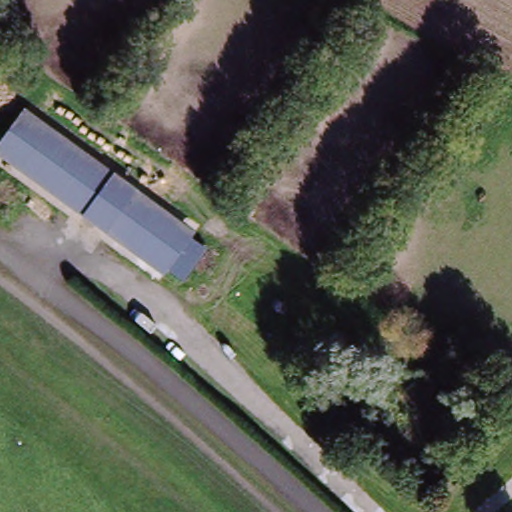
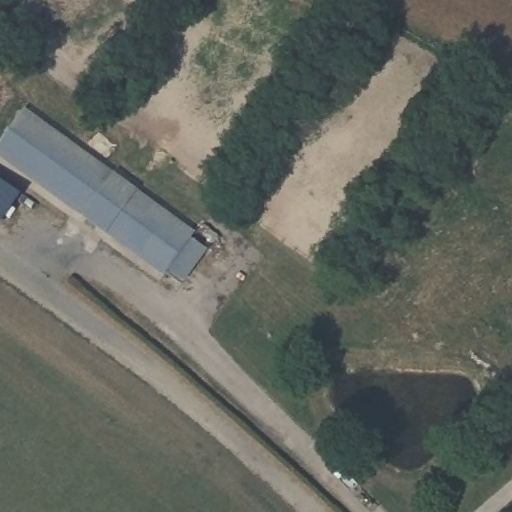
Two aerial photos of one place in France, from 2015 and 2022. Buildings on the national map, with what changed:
unchanged [(116,180),(119,179),(142,192),(142,197),(205,235),(182,271),(120,233),(117,236),(94,221),(95,217),(5,162),(25,125),(116,180)]

